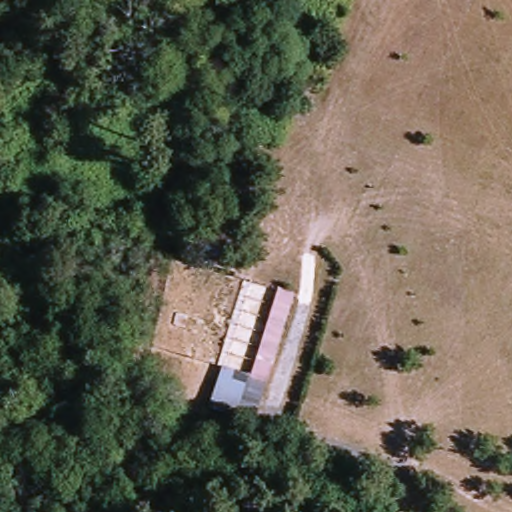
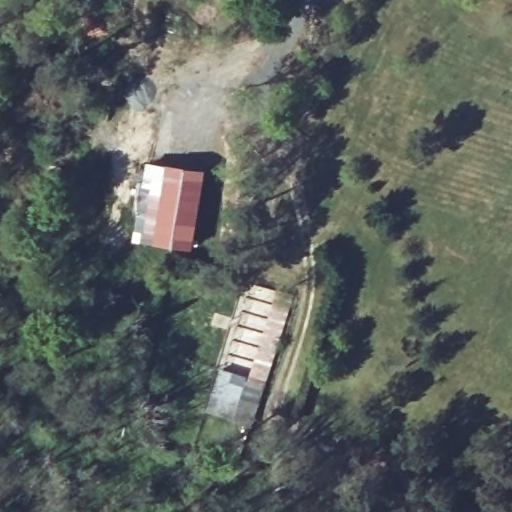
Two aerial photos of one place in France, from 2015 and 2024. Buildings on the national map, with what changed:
new [(146,161),(205,170),(192,247),(132,239),(146,161)]
unchanged [(293,294),(255,417),(210,403),(220,369),(250,378),(276,290),(293,294)]

